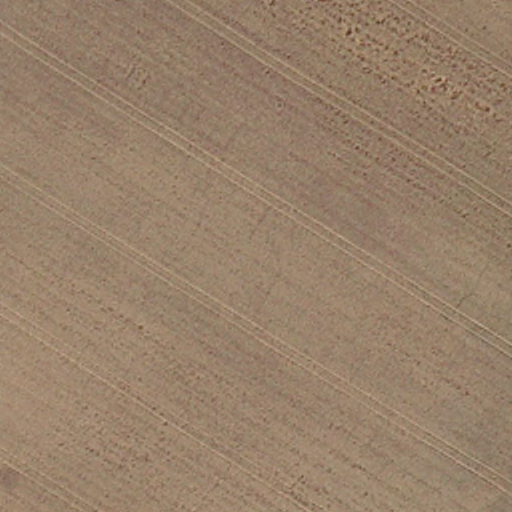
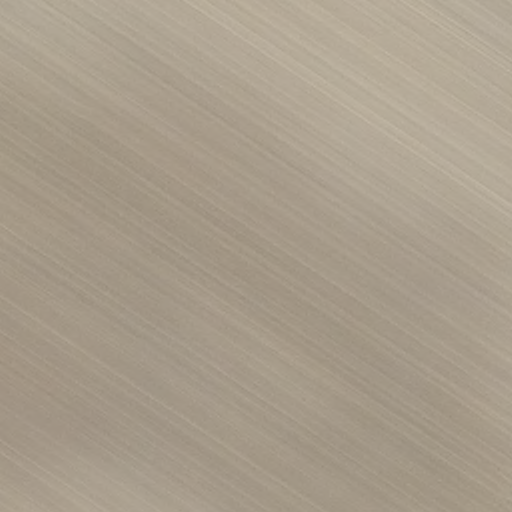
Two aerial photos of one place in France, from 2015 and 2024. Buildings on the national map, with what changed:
[]

